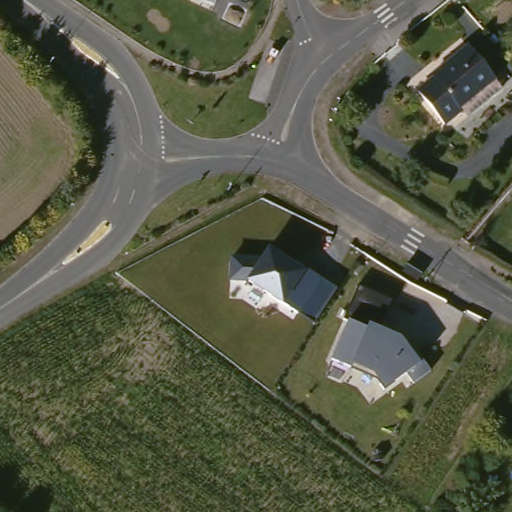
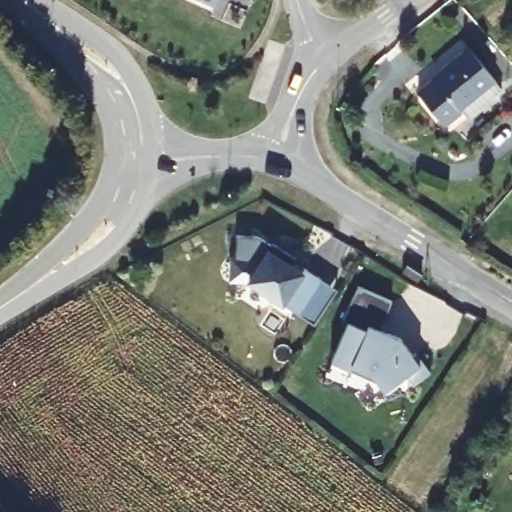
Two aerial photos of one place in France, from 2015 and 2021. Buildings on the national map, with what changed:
unchanged [(454,110),(437,124),(412,91),(425,81),(422,76),(461,47),(485,76),(497,90),(461,120),(454,110)]
unchanged [(315,321),(282,302),(246,282),(231,282),(232,255),(262,255),(270,245),(309,270),(337,289),(315,321)]
unchanged [(342,322),(356,288),(390,303),(383,330),(402,336),(412,355),(415,351),(430,370),(412,384),(406,374),(384,391),(372,377),(327,360),(342,322)]

